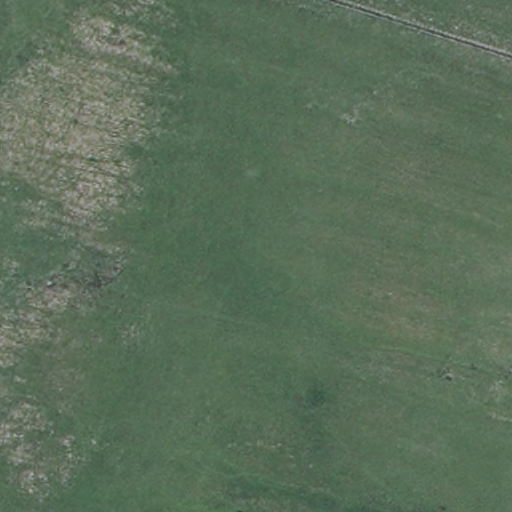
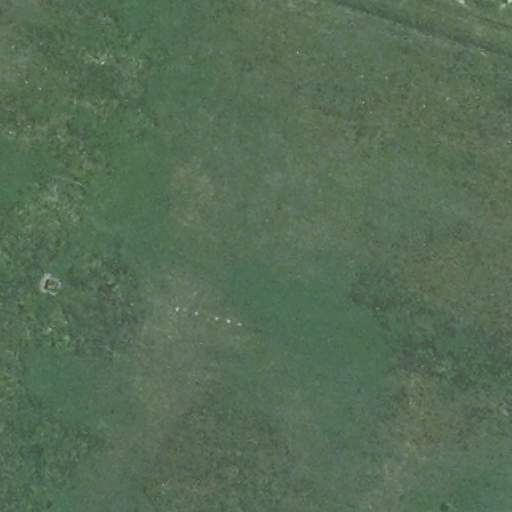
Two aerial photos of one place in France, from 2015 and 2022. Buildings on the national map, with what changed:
[]

